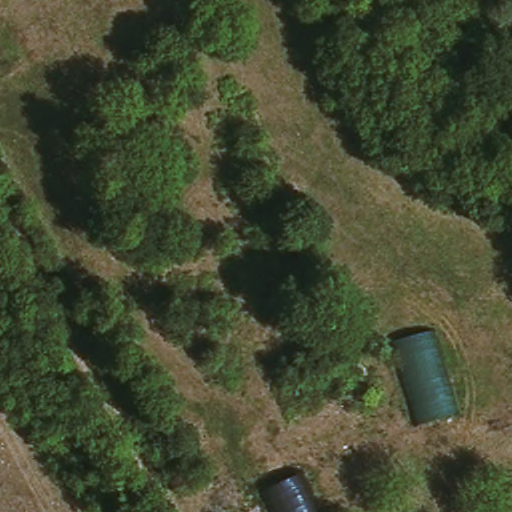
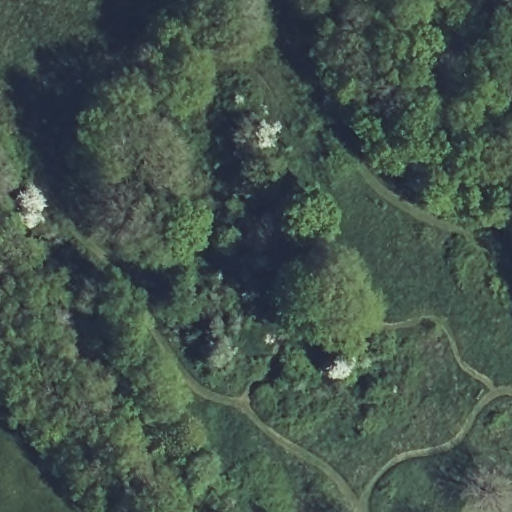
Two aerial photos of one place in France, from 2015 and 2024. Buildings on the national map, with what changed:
demolished [(433,327),(459,413),(419,424),(395,338),(433,327)]
demolished [(318,512),(274,512),(262,488),(296,471),(318,512)]
demolished [(255,512),(246,512),(253,509),(255,512)]

